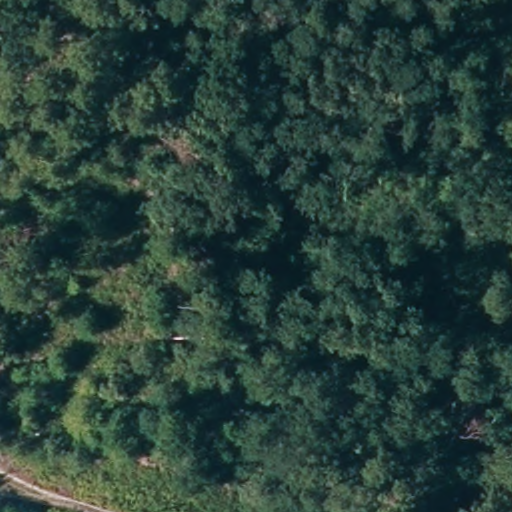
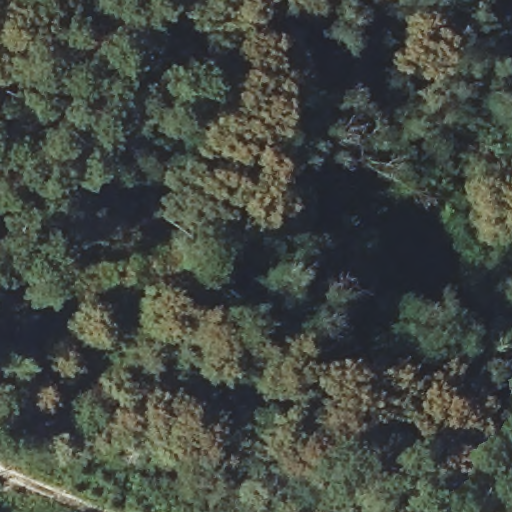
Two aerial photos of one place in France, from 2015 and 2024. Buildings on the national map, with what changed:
[]

